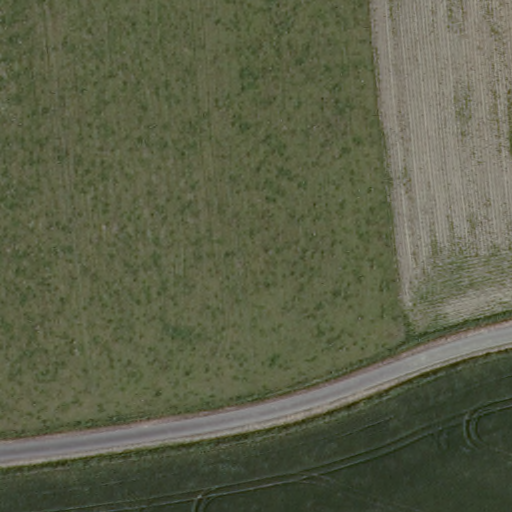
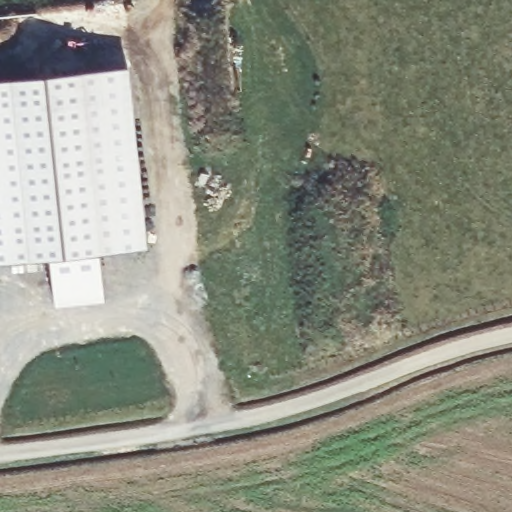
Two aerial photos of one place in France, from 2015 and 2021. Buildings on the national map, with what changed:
new [(127,70),(147,250),(101,255),(106,301),(57,306),(51,261),(0,266),(0,84),(127,70)]

